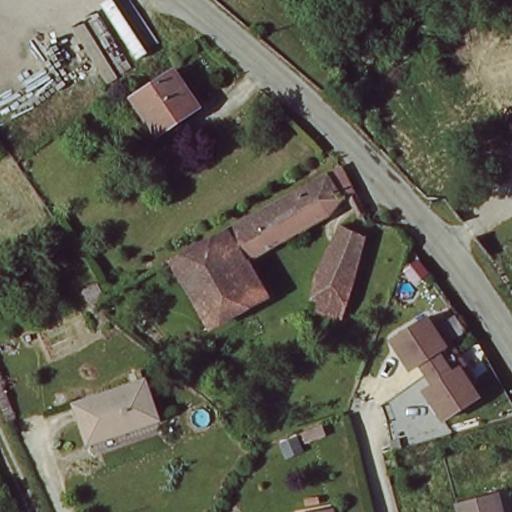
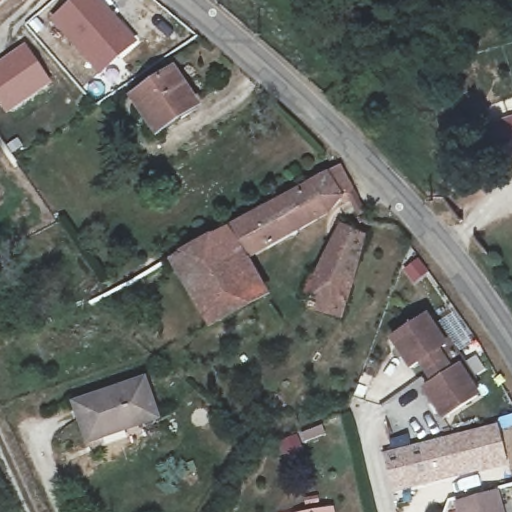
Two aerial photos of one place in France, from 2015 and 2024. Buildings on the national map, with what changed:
new [(0,2),(0,0),(2,0),(0,2)]
new [(68,0),(102,0),(138,40),(97,74),(48,17),(68,0)]
new [(24,42),(52,82),(5,114),(0,108),(0,58),(24,42)]
unchanged [(137,102),(177,77),(196,106),(156,132),(137,102)]
unchanged [(262,298),(211,329),(175,264),(255,220),(336,173),(344,188),(341,196),(248,253),(271,293),(262,298)]
unchanged [(322,312),(323,301),(314,298),(332,231),(347,232),(350,219),(359,220),(355,283),(350,290),(336,316),(322,312)]
unchanged [(404,365),(387,336),(423,315),(431,329),(436,326),(444,341),(451,353),(449,354),(420,371),(413,360),(404,365)]
unchanged [(466,380),(462,383),(470,397),(433,417),(417,388),(426,382),(420,371),(449,354),(451,353),(458,365),(466,380)]
unchanged [(146,375),(160,413),(90,438),(76,400),(146,375)]
new [(351,414),(374,512),(365,512),(343,416),(351,414)]
new [(497,418),(512,414),(512,427),(500,430),(508,466),(388,494),(380,451),(498,422),(497,418)]
unchanged [(498,489),(504,512),(460,512),(457,499),(498,489)]
unchanged [(337,512),(312,512),(337,508),(337,512)]

